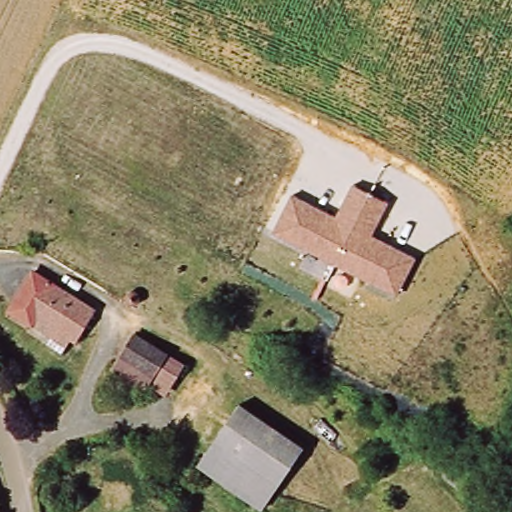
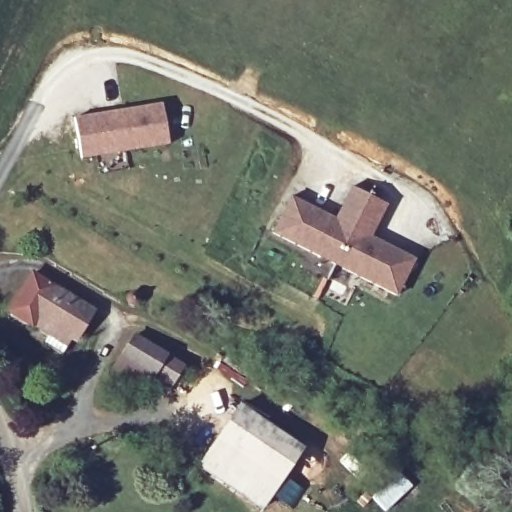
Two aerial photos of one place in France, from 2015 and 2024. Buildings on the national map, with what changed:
new [(75,117),(162,104),(170,145),(82,159),(75,117)]
unchanged [(290,196),(335,219),(352,185),(387,202),(372,235),(416,256),(397,294),(272,232),(290,196)]
unchanged [(40,330),(7,306),(35,268),(102,310),(77,346),(69,340),(62,348),(40,330)]
unchanged [(148,386),(142,402),(107,382),(133,336),(186,366),(167,398),(148,386)]
unchanged [(199,465),(235,408),(299,448),(263,505),(199,465)]

